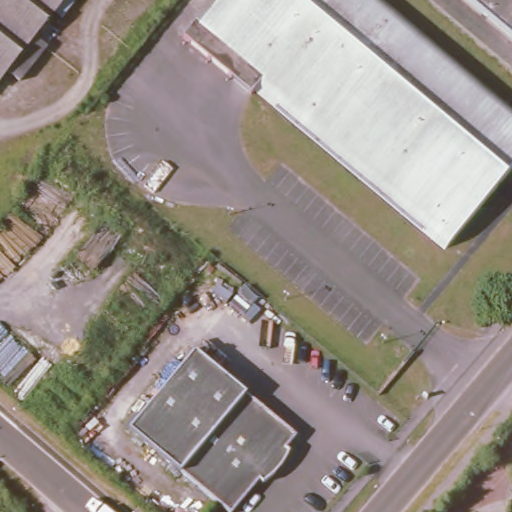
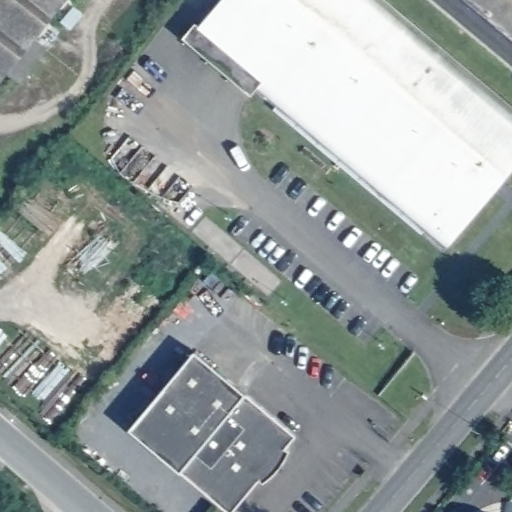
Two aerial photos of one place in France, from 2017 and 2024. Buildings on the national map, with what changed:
unchanged [(44,49),(18,82),(4,72),(0,77),(0,0),(61,0),(30,38),(44,49)]
unchanged [(251,97),(247,101),(178,45),(191,29),(195,32),(221,0),(374,0),(512,113),(512,171),(444,254),(251,97)]
unchanged [(512,31),(474,0),(512,0),(512,31)]
unchanged [(294,454),(297,457),(297,458),(296,458),(296,459),(296,460),(296,461),(295,461),(295,462),(294,462),(294,463),(294,464),(294,465),(293,465),(293,466),(292,467),(291,468),(291,469),(290,470),(289,471),(289,472),(288,472),(288,473),(288,474),(287,474),(286,474),(286,475),(286,476),(285,476),(284,477),(284,478),(283,478),(283,479),(282,479),(281,480),(281,481),(280,481),(279,482),(279,483),(278,483),(277,484),(276,484),(276,485),(275,485),(275,486),(274,486),(274,487),(273,487),(272,487),(271,488),(267,485),(244,512),(230,512),(131,429),(197,351),(304,442),(294,454)]

